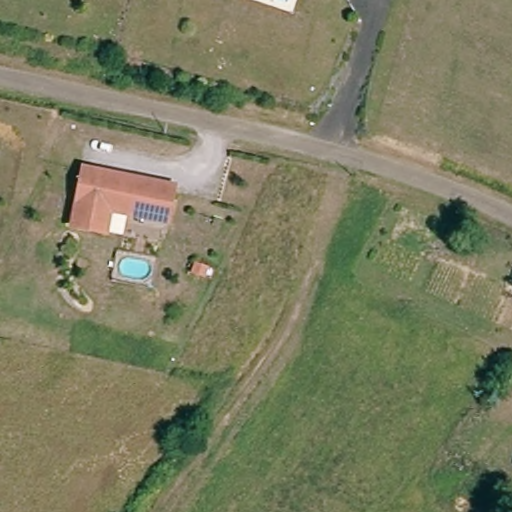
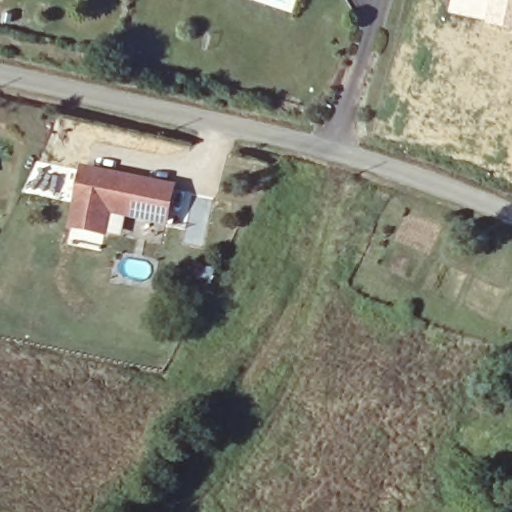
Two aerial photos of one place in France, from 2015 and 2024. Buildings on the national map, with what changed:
new [(512,0),(512,26),(447,11),(449,0),(512,0)]
unchanged [(177,190),(170,222),(112,210),(108,233),(77,227),(88,172),(177,190)]

